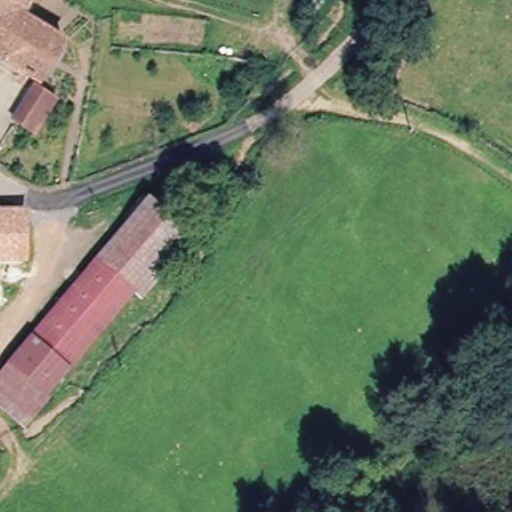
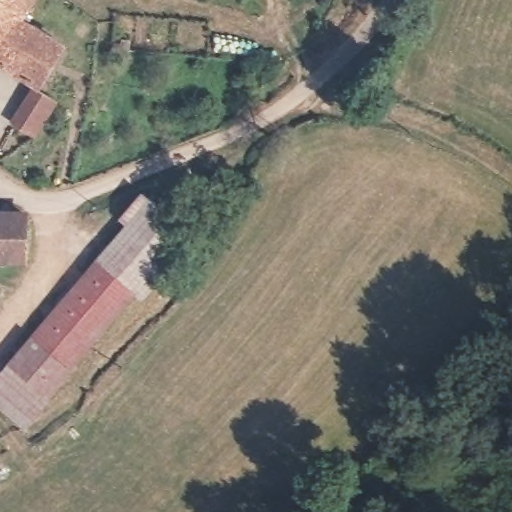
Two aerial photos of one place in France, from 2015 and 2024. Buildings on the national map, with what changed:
unchanged [(0,66),(0,0),(47,0),(34,20),(78,43),(61,74),(47,67),(33,83),(0,66)]
unchanged [(37,147),(15,134),(32,105),(41,91),(63,104),(56,115),(37,147)]
unchanged [(145,196),(193,234),(140,299),(133,293),(46,396),(8,365),(145,196)]
unchanged [(23,259),(0,259),(0,217),(25,218),(23,259)]
unchanged [(0,402),(0,373),(8,365),(46,396),(25,421),(20,421),(0,402)]

